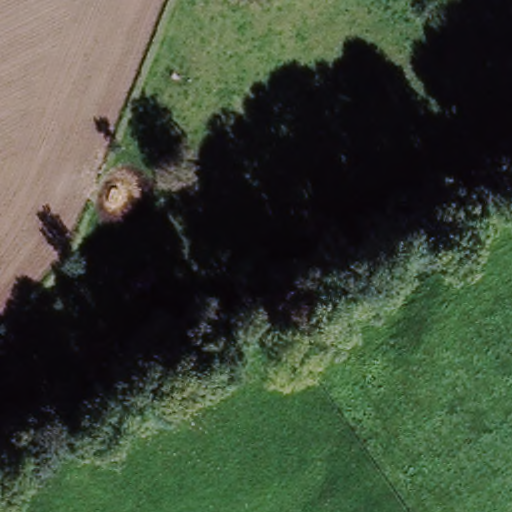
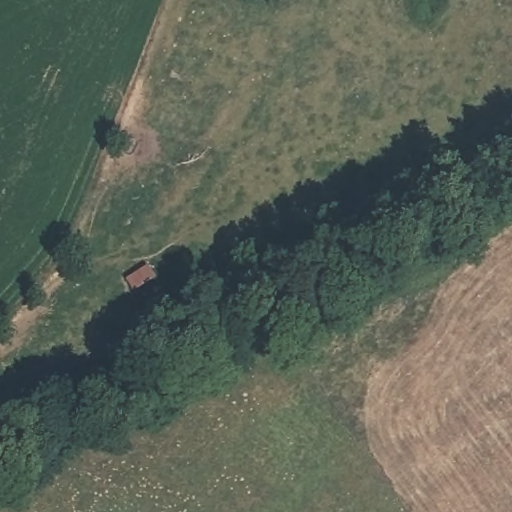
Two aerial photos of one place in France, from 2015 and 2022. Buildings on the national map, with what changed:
unchanged [(166,254),(184,288),(159,303),(141,268),(166,254)]

